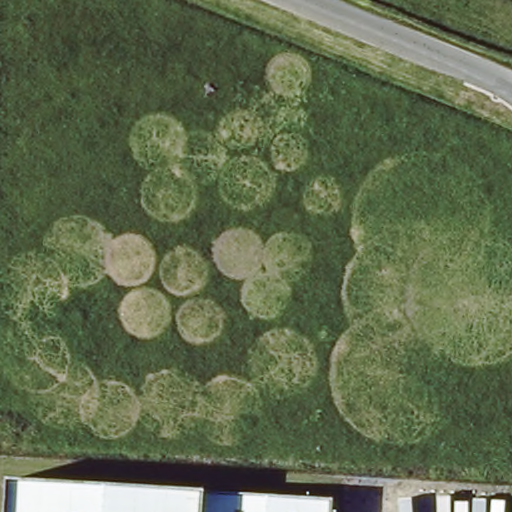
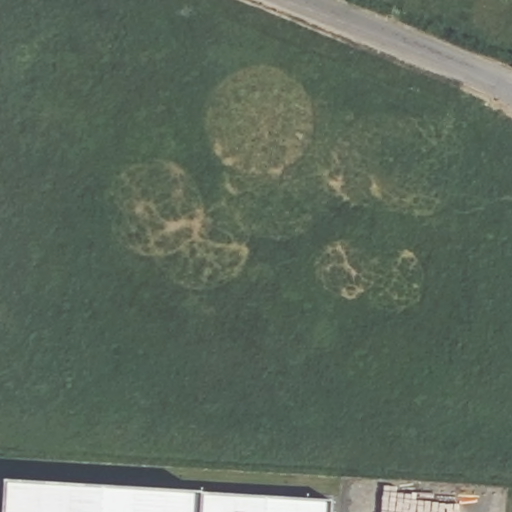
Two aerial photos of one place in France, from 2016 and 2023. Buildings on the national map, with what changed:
unchanged [(12,493),(294,512),(11,512),(12,493)]

